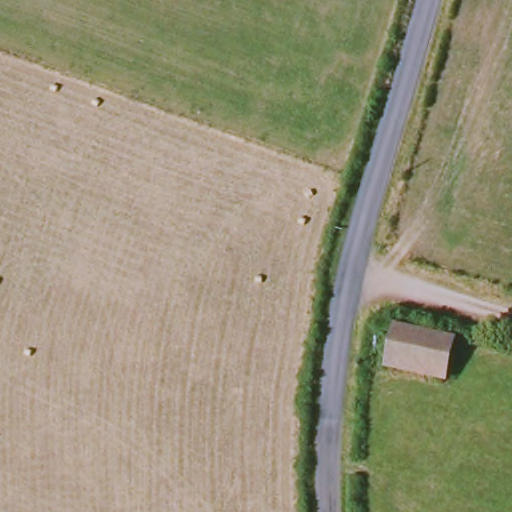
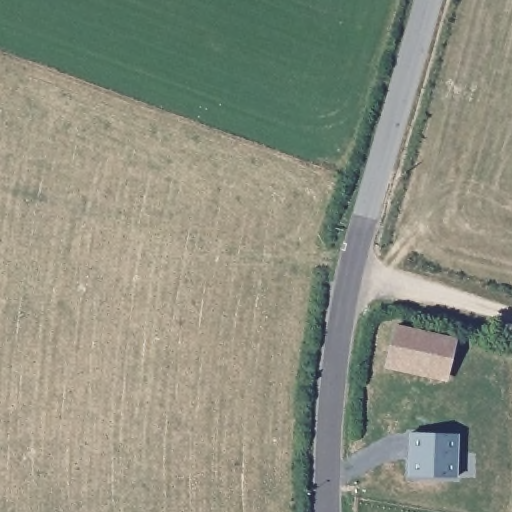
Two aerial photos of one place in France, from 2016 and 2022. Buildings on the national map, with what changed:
unchanged [(400,327),(459,340),(450,379),(391,366),(400,327)]
new [(456,434),(455,477),(407,476),(408,433),(456,434)]

